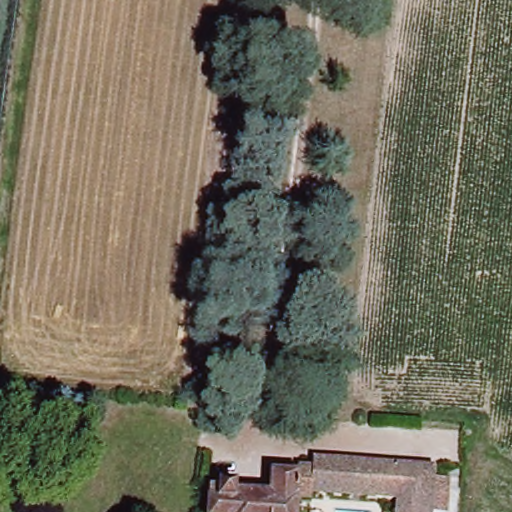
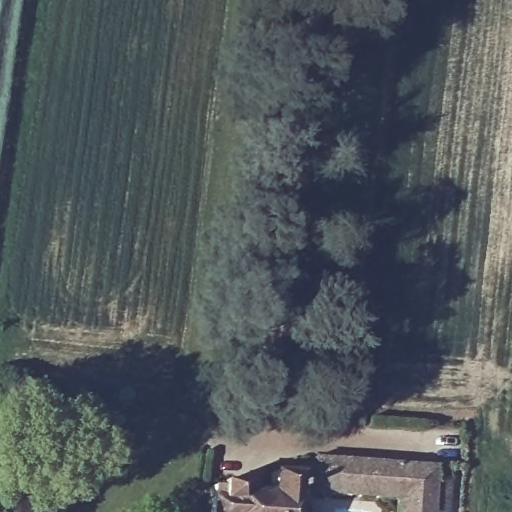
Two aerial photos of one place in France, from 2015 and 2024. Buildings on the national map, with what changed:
unchanged [(391,512),(392,499),(306,495),(305,501),(292,501),(291,512),(204,512),(206,489),(215,489),(215,483),(235,485),(234,489),(263,490),(264,475),(294,476),(296,465),(309,466),(309,458),(433,467),(430,512),(391,512)]

